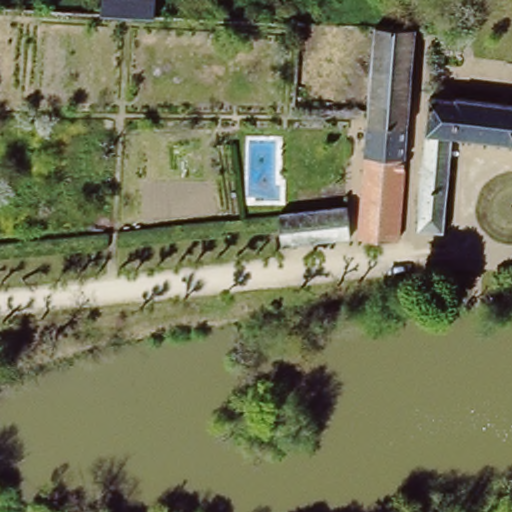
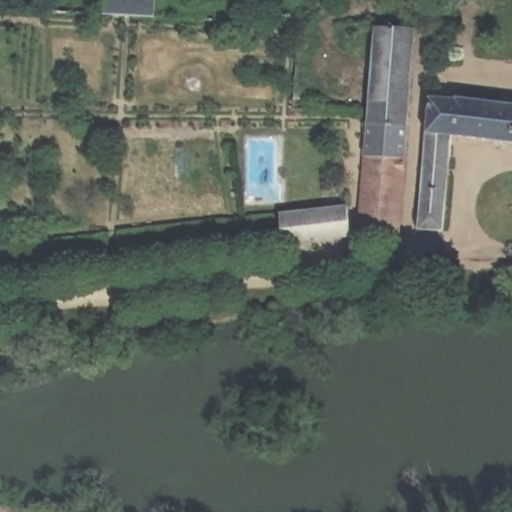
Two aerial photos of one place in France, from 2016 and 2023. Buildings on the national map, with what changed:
unchanged [(156,19),(102,14),(102,0),(155,0),(156,19)]
unchanged [(369,102),(375,25),(415,27),(400,220),(400,232),(361,232),(362,217),(369,102)]
unchanged [(454,136),(452,148),(452,152),(446,209),(446,212),(444,229),(441,230),(422,227),(428,97),(512,106),(512,143),(454,136)]
unchanged [(351,233),(281,243),(281,242),(279,231),(277,212),(347,205),(350,223),(351,233)]

